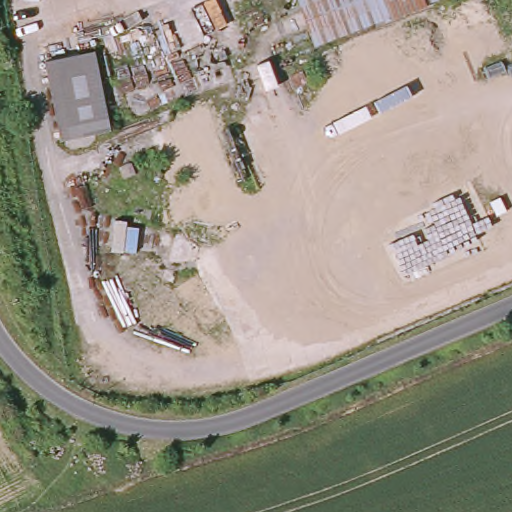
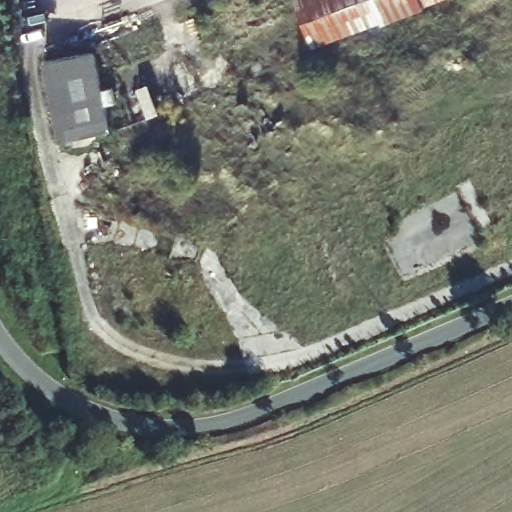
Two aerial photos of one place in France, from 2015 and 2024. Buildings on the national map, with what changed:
unchanged [(290,54),(269,0),(431,0),(290,54)]
unchanged [(92,49),(106,129),(57,137),(43,57),(92,49)]

